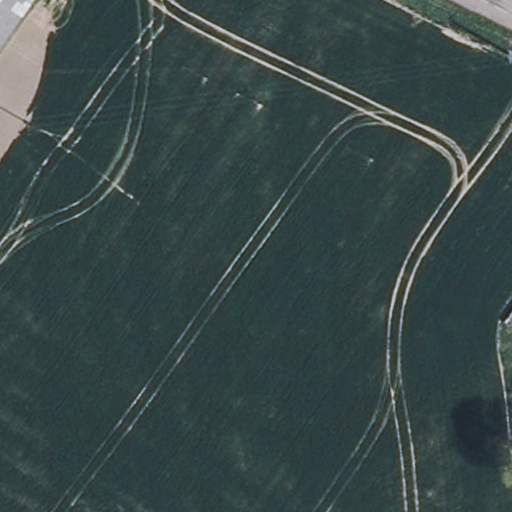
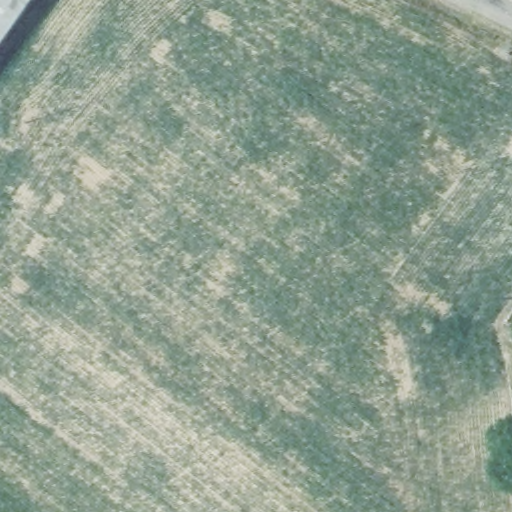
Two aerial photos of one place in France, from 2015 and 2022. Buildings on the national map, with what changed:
unchanged [(0,44),(0,0),(31,0),(0,44)]

